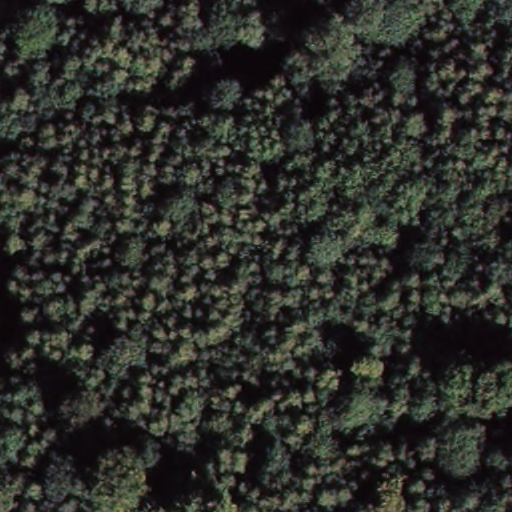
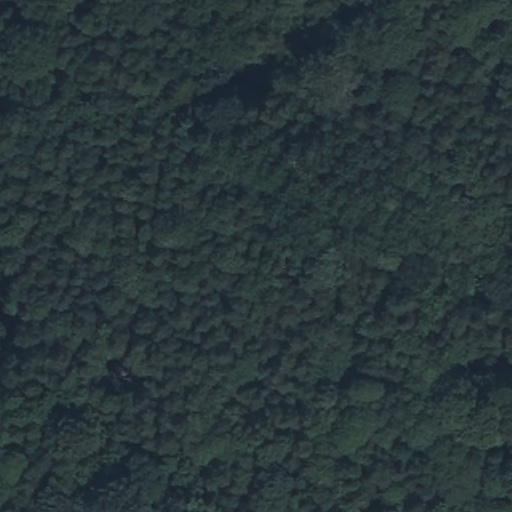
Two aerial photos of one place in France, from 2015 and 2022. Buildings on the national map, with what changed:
[]

